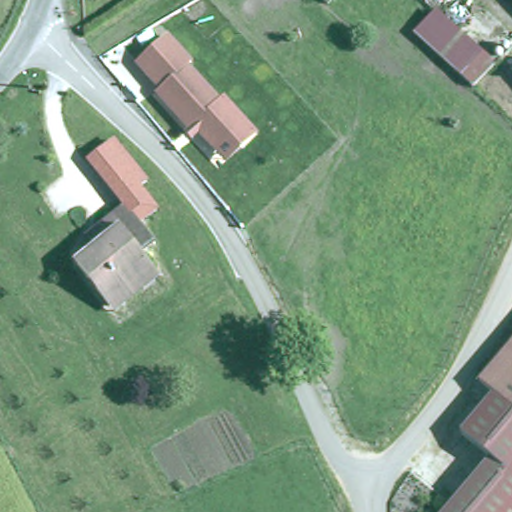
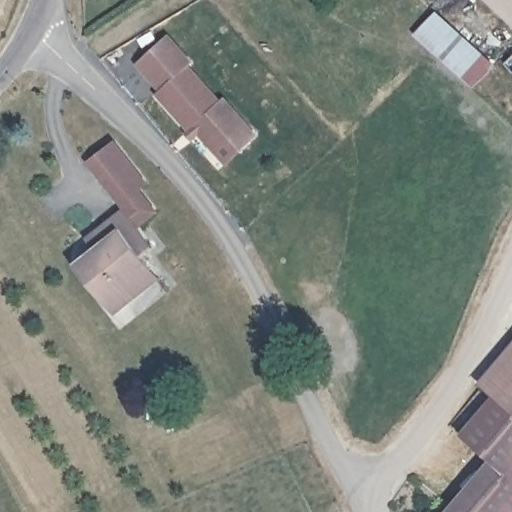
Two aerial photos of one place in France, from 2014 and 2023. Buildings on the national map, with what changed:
unchanged [(416,39),(437,18),(494,71),(475,93),(416,39)]
unchanged [(213,152),(198,135),(191,142),(184,135),(188,132),(155,95),(159,91),(136,66),(166,39),(189,64),(186,68),(218,104),(221,101),(253,138),(238,151),(224,164),(213,152)]
unchanged [(115,139),(151,183),(143,190),(162,213),(142,228),(124,201),(120,204),(86,162),(115,139)]
unchanged [(100,302),(71,258),(93,244),(83,229),(91,223),(124,201),(145,232),(151,241),(136,251),(145,265),(153,276),(104,308),(100,302)]
unchanged [(512,329),(512,335),(509,333),(512,329)]
unchanged [(457,429),(488,390),(473,378),(509,333),(512,335),(512,512),(439,512),(487,453),(457,429)]

